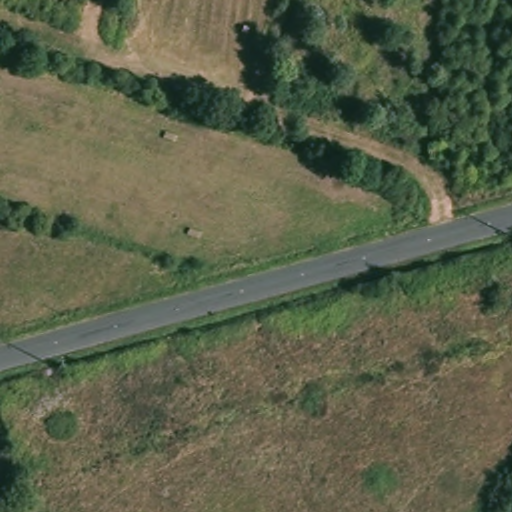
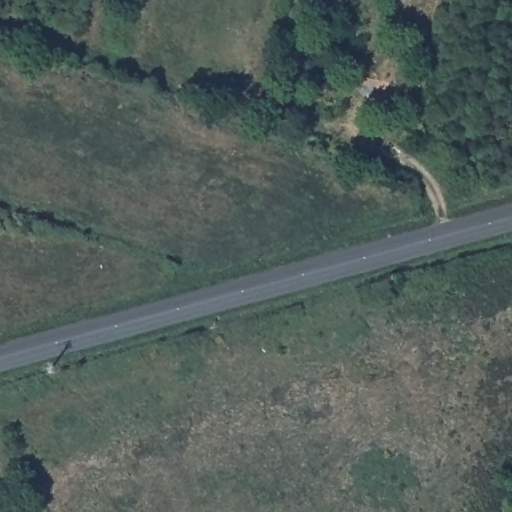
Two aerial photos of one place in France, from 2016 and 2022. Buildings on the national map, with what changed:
unchanged [(443,148),(441,163),(430,161),(432,147),(443,148)]

